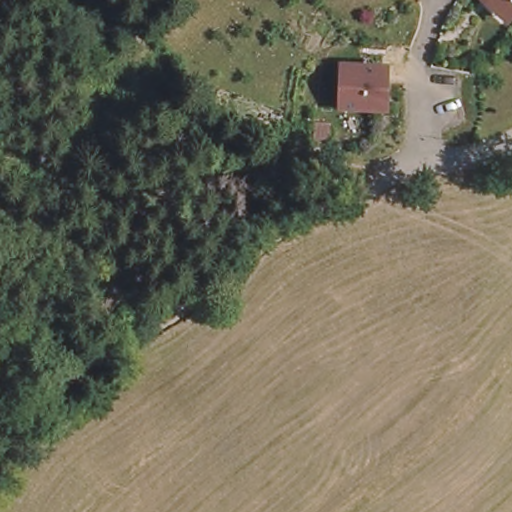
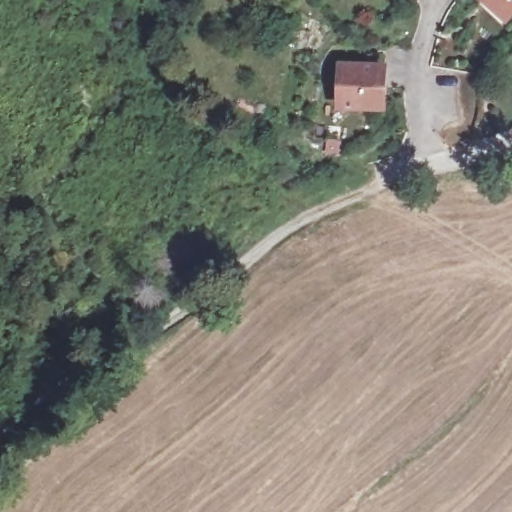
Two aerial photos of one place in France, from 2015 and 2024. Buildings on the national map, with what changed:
unchanged [(487,9),(487,0),(512,0),(512,17),(505,25),(500,20),(487,9)]
unchanged [(389,109),(346,107),(348,67),(391,68),(389,109)]

